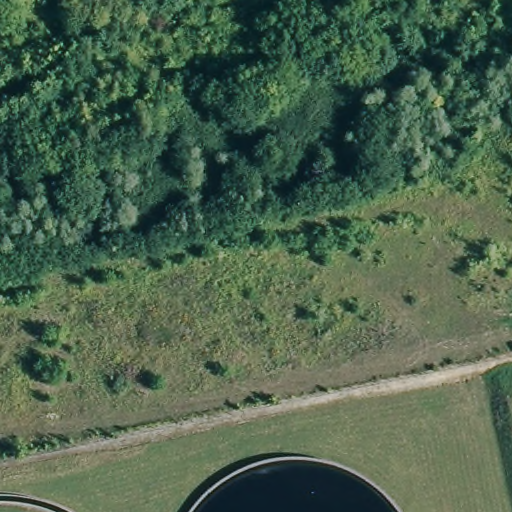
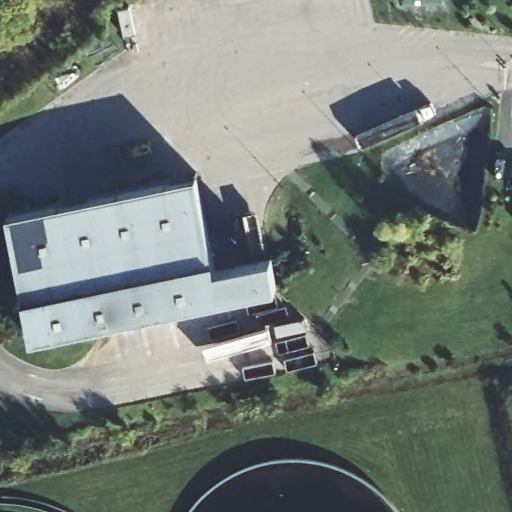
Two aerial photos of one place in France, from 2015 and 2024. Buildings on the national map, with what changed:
new [(197,177),(216,272),(221,298),(32,337),(7,215),(197,177)]
new [(271,260),(277,286),(221,298),(216,272),(271,260)]

